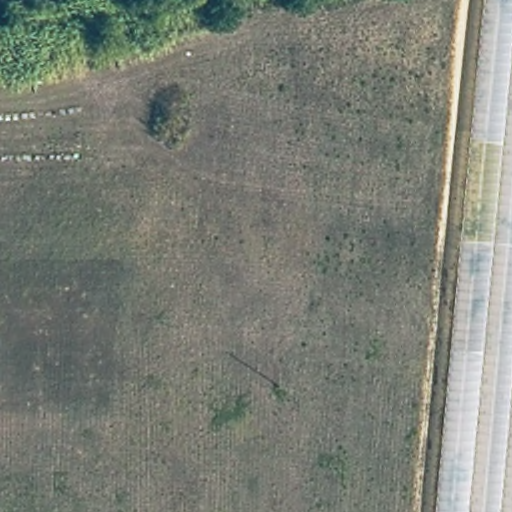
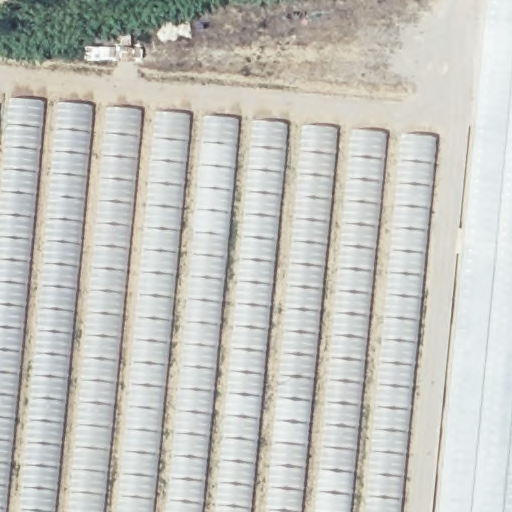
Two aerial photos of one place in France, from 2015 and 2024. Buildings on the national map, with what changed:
unchanged [(512,0),(512,512),(439,512),(489,0),(512,0)]
new [(2,175),(7,99),(435,138),(398,512),(0,512),(0,175),(2,175)]

